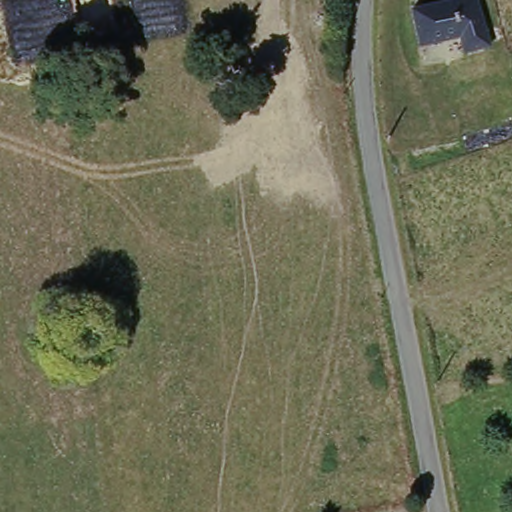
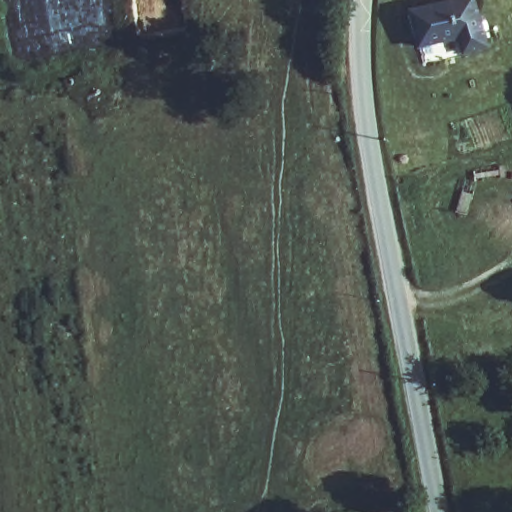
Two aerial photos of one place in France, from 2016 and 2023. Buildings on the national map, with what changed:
unchanged [(443,0),(461,0),(469,31),(427,41),(418,6),(443,0)]

